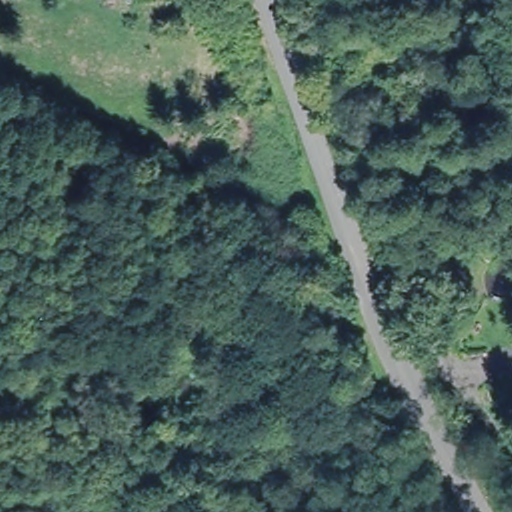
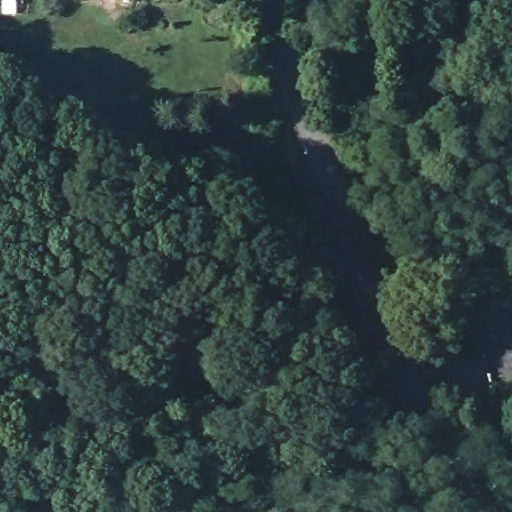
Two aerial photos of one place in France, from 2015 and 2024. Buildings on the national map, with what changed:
[]

